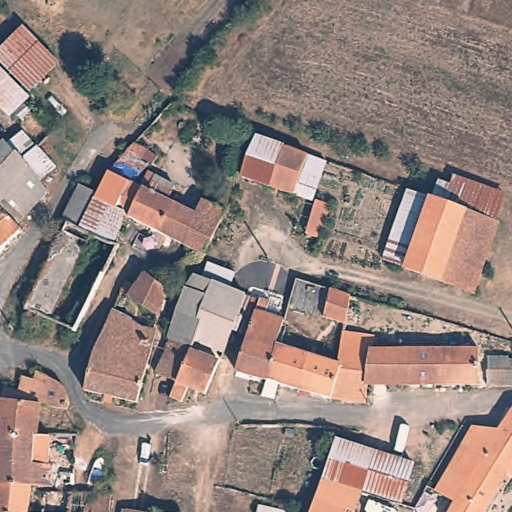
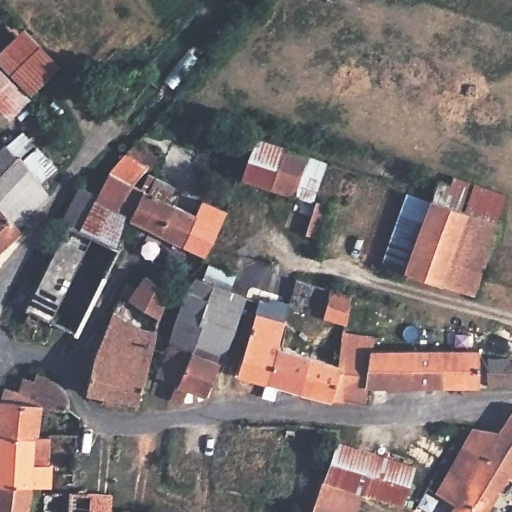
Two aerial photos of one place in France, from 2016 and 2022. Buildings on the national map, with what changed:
unchanged [(38,46),(53,38),(71,58),(57,70),(27,101),(12,122),(0,115),(0,58),(26,32),(38,46)]
unchanged [(126,205),(117,234),(103,228),(71,214),(66,211),(76,191),(84,176),(100,183),(108,167),(114,159),(137,133),(159,147),(137,173),(178,196),(165,225),(126,205)]
unchanged [(39,191),(17,166),(5,150),(20,137),(53,175),(39,191)]
unchanged [(308,174),(307,181),(310,182),(302,201),(231,178),(246,137),(299,155),(296,165),(300,166),(301,165),(302,164),(305,165),(307,166),(308,168),(308,170),(308,174)]
unchanged [(5,150),(17,166),(39,191),(45,198),(31,210),(22,220),(16,230),(17,233),(21,236),(19,239),(15,243),(0,255),(0,151),(3,149),(5,150)]
unchanged [(447,209),(457,184),(508,201),(499,227),(447,209)]
unchanged [(206,245),(165,225),(178,196),(198,207),(207,194),(227,207),(229,209),(214,233),(206,245)]
unchanged [(289,247),(305,202),(319,207),(303,252),(289,247)]
unchanged [(405,274),(431,203),(447,209),(499,227),(475,299),(405,274)]
unchanged [(76,322),(70,321),(42,306),(36,317),(22,309),(27,300),(24,299),(71,214),(103,228),(117,234),(122,236),(97,283),(76,322)]
unchanged [(293,287),(299,270),(318,276),(313,293),(293,287)]
unchanged [(121,298),(133,271),(145,277),(149,278),(167,296),(159,325),(121,298)]
unchanged [(167,378),(157,374),(174,341),(170,339),(182,303),(188,291),(199,278),(247,297),(229,350),(220,361),(207,395),(190,388),(183,405),(172,400),(174,394),(162,389),(167,378)]
unchanged [(328,316),(336,287),(357,293),(348,322),(328,316)]
unchanged [(84,396),(92,357),(114,314),(142,333),(155,338),(137,408),(84,396)]
unchanged [(267,383),(237,373),(257,316),(283,325),(277,350),(270,372),(267,383)]
unchanged [(346,330),(374,341),(371,351),(482,355),(482,361),(511,363),(510,368),(512,368),(512,390),(502,390),(395,387),(370,386),(366,405),(327,402),(300,393),(278,386),(273,401),(263,398),(266,390),(267,383),(270,372),(277,350),(309,361),(336,369),(346,330)]
unchanged [(75,409),(74,414),(67,413),(44,412),(44,408),(24,405),(29,380),(41,382),(42,374),(52,378),(60,382),(65,386),(71,392),(74,398),(75,404),(75,409)]
unchanged [(34,439),(3,438),(5,405),(10,405),(24,405),(44,408),(44,412),(41,440),(34,439)]
unchanged [(503,504),(495,500),(487,512),(453,512),(468,486),(450,475),(476,431),(500,435),(512,416),(512,491),(503,504)]
unchanged [(36,491),(2,488),(3,438),(34,439),(41,440),(52,440),(47,457),(47,473),(56,473),(55,478),(77,483),(76,491),(54,491),(36,491)]
unchanged [(340,482),(349,457),(406,473),(392,497),(340,482)]
unchanged [(36,491),(35,507),(47,507),(48,497),(53,498),(75,498),(77,498),(75,512),(0,512),(0,505),(2,488),(36,491)]
unchanged [(349,499),(346,512),(314,512),(318,491),(349,499)]
unchanged [(115,499),(113,512),(75,512),(77,498),(115,499)]

